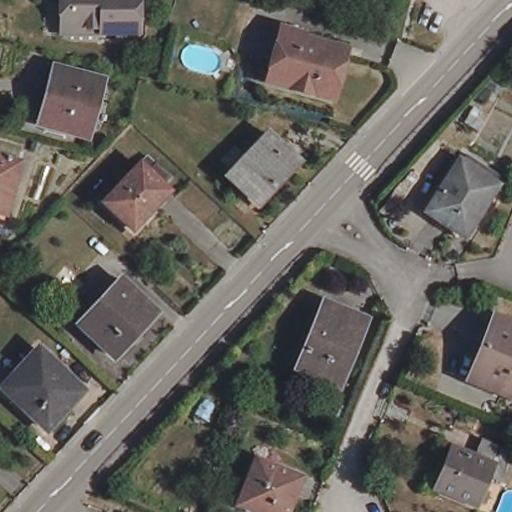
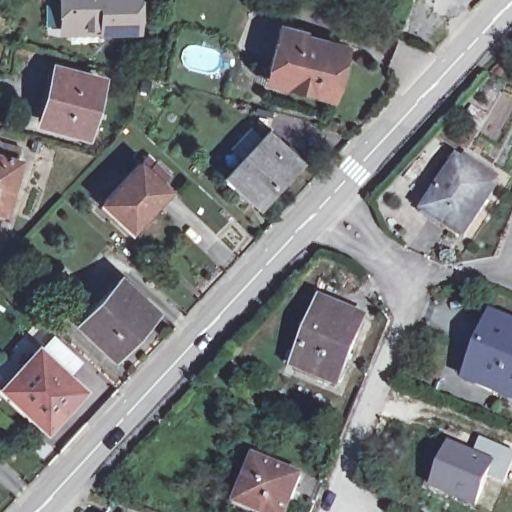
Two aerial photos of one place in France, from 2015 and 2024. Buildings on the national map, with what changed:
unchanged [(138,28),(99,28),(99,23),(64,23),(64,0),(137,0),(138,28)]
unchanged [(264,76),(273,35),(341,51),(331,95),(313,92),(311,97),(284,91),(261,86),(264,76)]
unchanged [(95,80),(79,136),(38,125),(53,69),(95,80)]
unchanged [(296,159),(256,202),(227,173),(266,131),(296,159)]
unchanged [(4,216),(0,215),(0,157),(19,163),(4,216)]
unchanged [(168,190),(131,229),(101,203),(139,162),(168,190)]
unchanged [(493,184),(461,236),(444,226),(447,222),(426,209),(457,162),(493,184)]
unchanged [(154,311),(144,321),(148,325),(126,348),(123,345),(113,357),(79,325),(121,280),(154,311)]
unchanged [(363,320),(336,383),(297,366),(323,303),(363,320)]
unchanged [(512,323),(512,394),(471,377),(494,316),(512,323)]
unchanged [(19,379),(14,375),(34,354),(77,394),(40,433),(21,415),(27,409),(8,391),(19,379)]
unchanged [(469,458),(477,440),(509,454),(498,483),(481,475),(469,504),(429,487),(446,448),(469,458)]
unchanged [(281,512),(244,512),(238,509),(257,466),(294,483),(281,512)]

